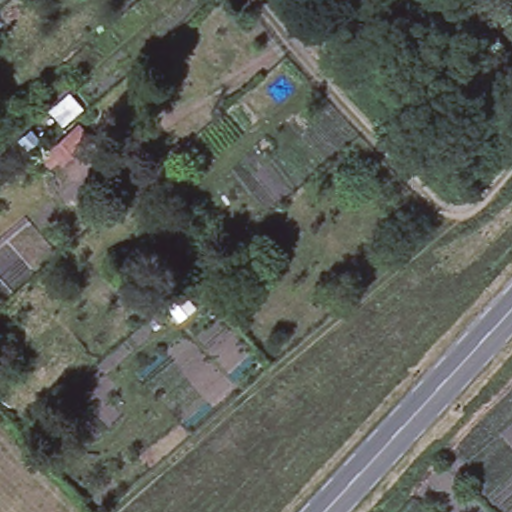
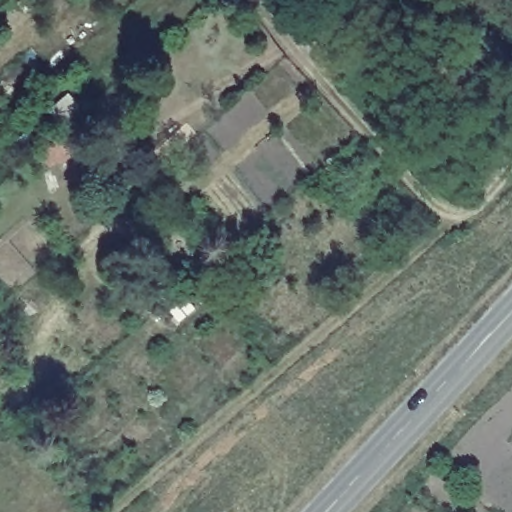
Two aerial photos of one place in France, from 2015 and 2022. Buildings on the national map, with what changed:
unchanged [(504,69),(488,85),(469,71),(489,49),(504,69)]
unchanged [(33,156),(70,125),(82,141),(44,175),(33,156)]

